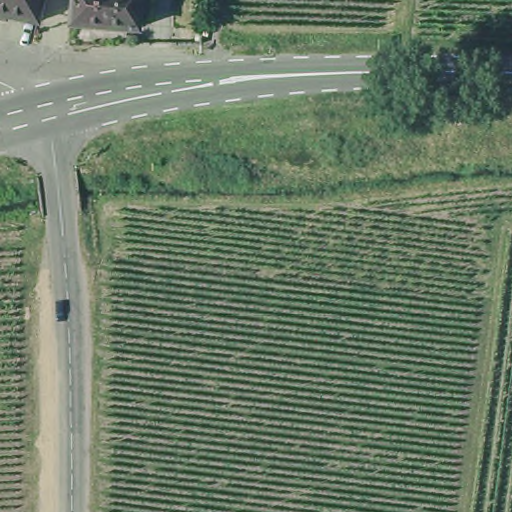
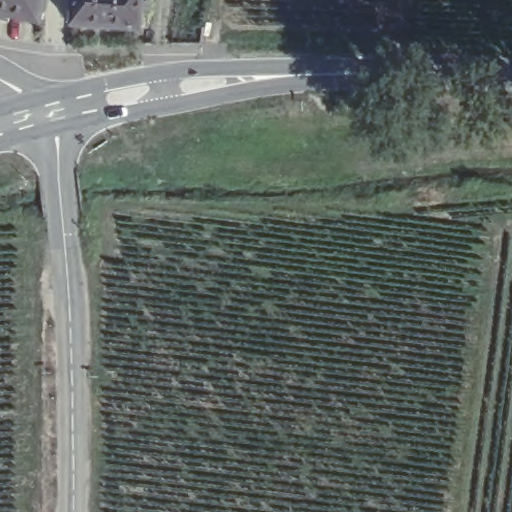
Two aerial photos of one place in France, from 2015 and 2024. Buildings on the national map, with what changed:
unchanged [(0,10),(0,0),(50,0),(45,20),(0,10)]
unchanged [(142,19),(142,23),(72,16),(73,0),(152,0),(150,20),(142,19)]
unchanged [(204,32),(206,20),(214,22),(212,34),(204,32)]

